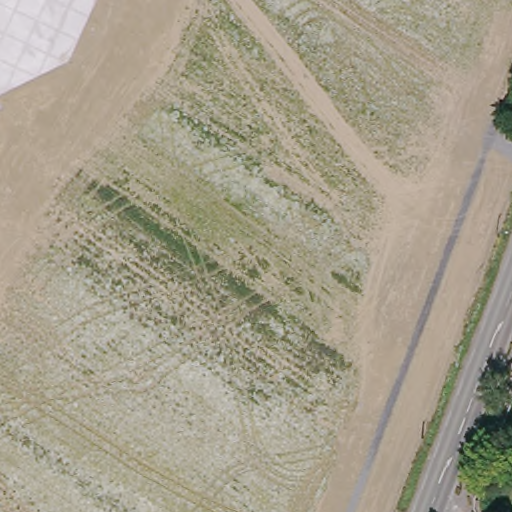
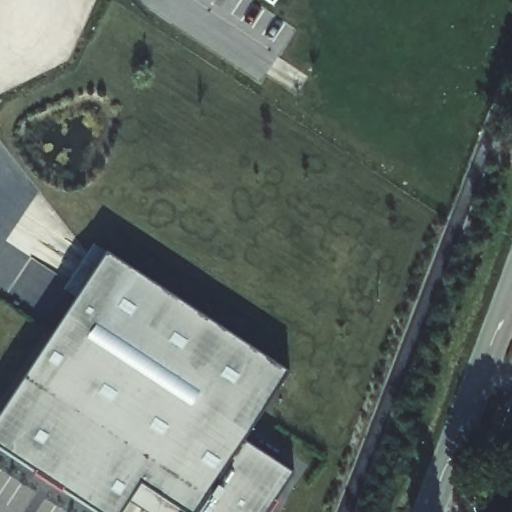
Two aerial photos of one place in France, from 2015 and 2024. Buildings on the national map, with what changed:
new [(262,0),(285,0),(278,11),(262,0)]
new [(243,452),(292,482),(273,512),(170,512),(137,491),(124,512),(84,512),(0,460),(0,427),(109,265),(289,382),(243,452)]

